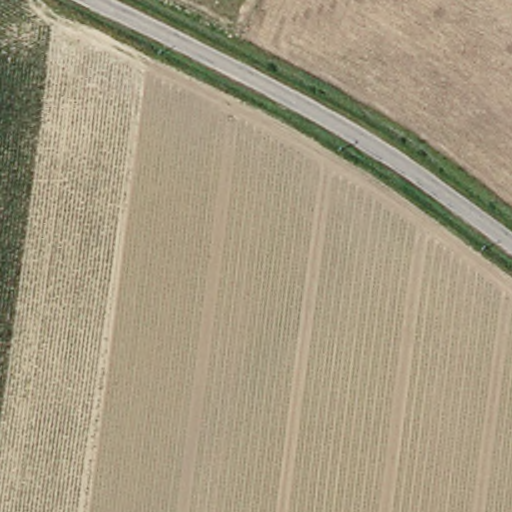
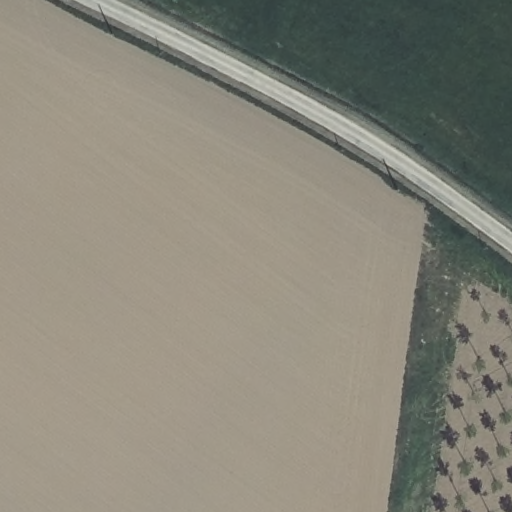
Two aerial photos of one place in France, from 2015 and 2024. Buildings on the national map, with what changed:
[]

